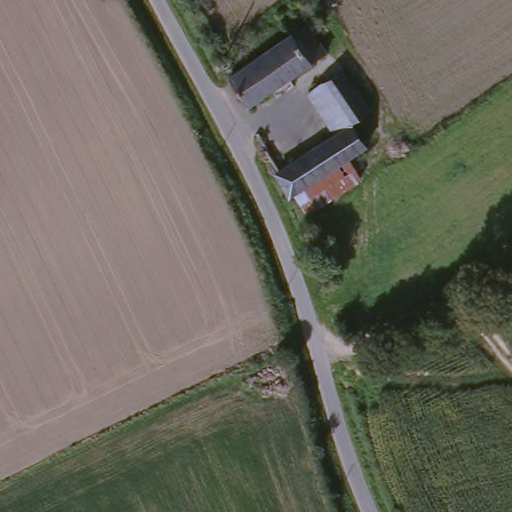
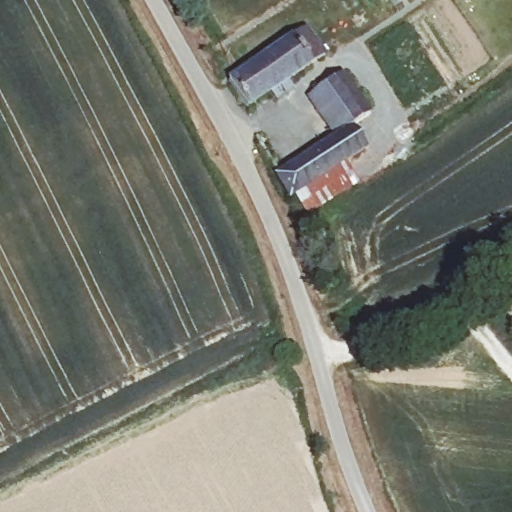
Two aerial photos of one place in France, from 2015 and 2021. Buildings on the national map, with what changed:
unchanged [(309,19),(319,34),(311,40),(319,54),(243,108),(223,79),(309,19)]
unchanged [(323,87),(341,74),(366,114),(348,129),(323,87)]
unchanged [(331,139),(308,97),(323,87),(348,129),(363,153),(344,165),(303,193),(288,204),(274,179),(331,139)]
unchanged [(257,135),(266,129),(273,142),(263,149),(257,135)]
unchanged [(318,215),(316,213),(315,212),(303,193),(344,165),(358,186),(359,188),(318,215)]
unchanged [(500,283),(512,279),(512,315),(500,283)]

